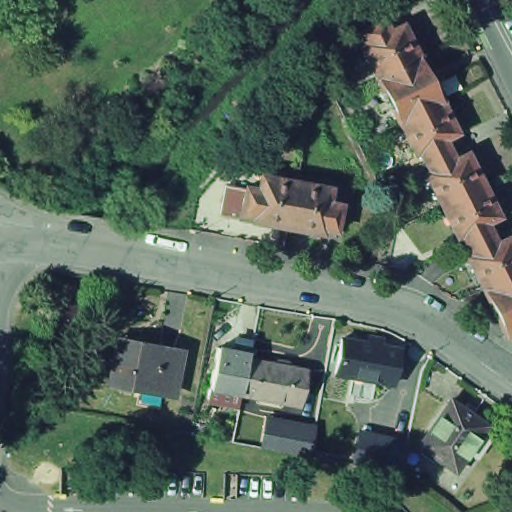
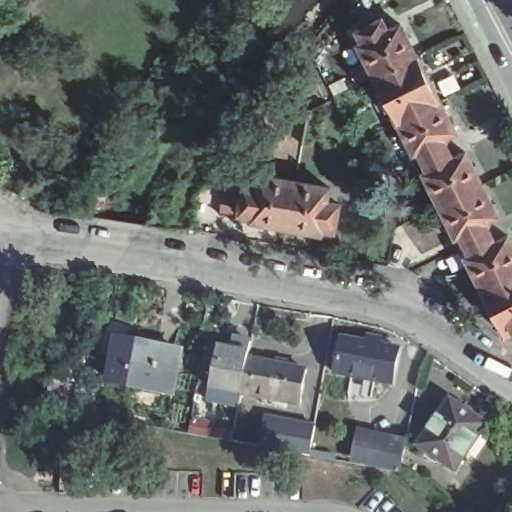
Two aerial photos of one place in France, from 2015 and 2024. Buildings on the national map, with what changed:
unchanged [(357,40),(361,39),(355,27),(380,15),(386,26),(398,20),(415,51),(373,72),(357,40)]
unchanged [(373,72),(415,51),(438,96),(396,117),(388,102),(385,105),(377,89),(380,86),(373,72)]
unchanged [(480,180),(439,200),(423,169),(427,166),(422,156),(417,146),(412,149),(396,117),(438,96),(454,128),(441,135),(446,145),(451,155),(465,149),(480,180)]
unchanged [(286,226),(239,218),(245,186),(257,189),(260,175),(294,181),(286,226)]
unchanged [(512,268),(485,281),(481,283),(465,252),(470,250),(465,240),(459,229),(455,231),(439,200),(480,180),(496,211),(483,217),(489,227),(494,238),(507,231),(512,241),(512,268)]
unchanged [(328,187),(326,202),(338,204),(333,235),(286,226),(294,181),(328,187)]
unchanged [(481,283),(485,281),(512,268),(512,326),(505,330),(481,283)]
unchanged [(397,378),(340,367),(346,332),(404,343),(397,378)]
unchanged [(180,356),(172,398),(110,386),(118,345),(180,356)]
unchanged [(304,405),(245,393),(214,386),(222,345),(253,352),(253,356),(252,358),(310,370),(304,405)]
unchanged [(466,447),(455,465),(418,440),(450,395),(486,420),(483,423),(491,430),(475,452),(466,447)]
unchanged [(310,455),(290,451),(295,422),(315,426),(310,455)]
unchanged [(388,437),(405,441),(400,472),(382,468),(388,437)]

